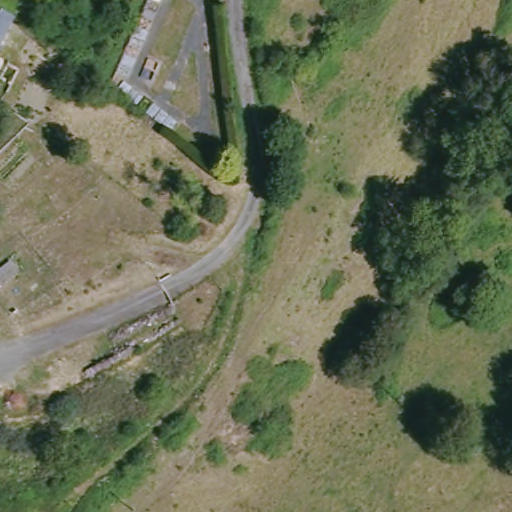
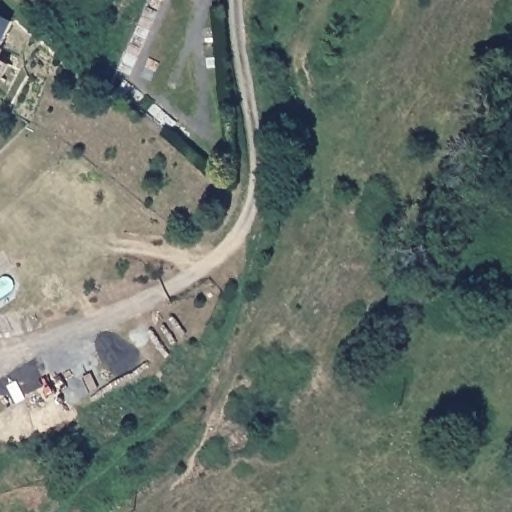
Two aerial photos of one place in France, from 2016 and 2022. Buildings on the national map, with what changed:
unchanged [(8,74),(0,69),(0,10),(13,16),(5,36),(1,46),(18,56),(8,74)]

